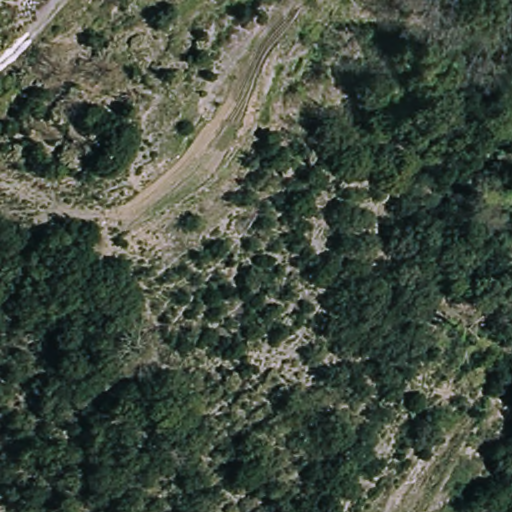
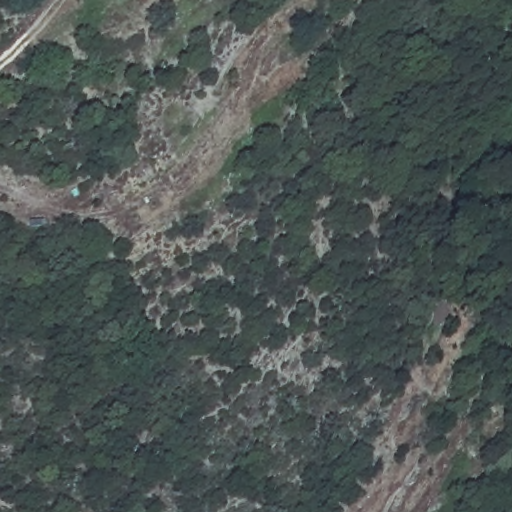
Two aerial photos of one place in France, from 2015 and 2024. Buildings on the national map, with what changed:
[]

